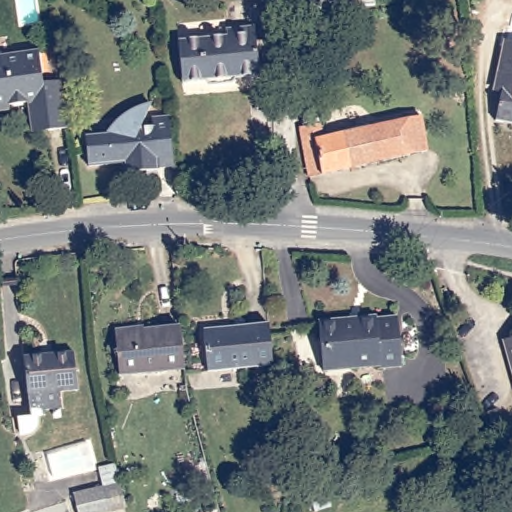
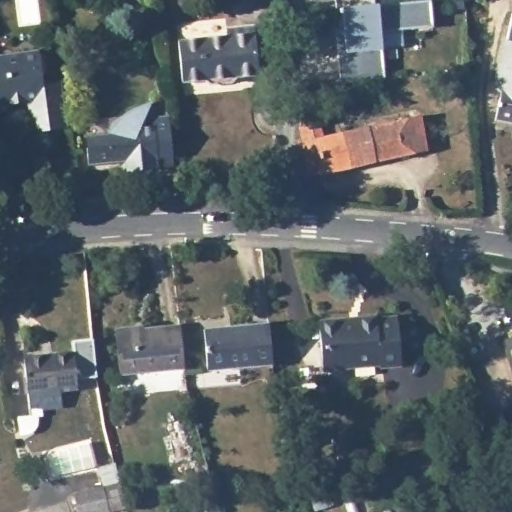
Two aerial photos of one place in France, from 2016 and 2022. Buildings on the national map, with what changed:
unchanged [(371,4),(332,8),(331,0),(370,0),(371,4)]
new [(332,33),(341,32),(338,7),(421,0),(427,0),(429,27),(377,31),(381,78),(337,83),(332,33)]
unchanged [(505,85),(497,84),(511,20),(512,20),(512,117),(499,114),(505,85)]
unchanged [(226,38),(226,33),(255,29),(261,79),(240,81),(235,87),(213,90),(206,84),(185,86),(181,44),(226,38)]
unchanged [(27,112),(26,106),(8,108),(9,112),(0,113),(0,60),(39,54),(43,87),(62,84),(68,132),(47,135),(32,138),(27,112)]
unchanged [(147,170),(148,173),(116,176),(113,165),(80,169),(78,152),(77,138),(96,136),(104,125),(110,120),(119,113),(131,107),(135,106),(138,106),(128,127),(134,131),(142,129),(141,119),(160,117),(163,145),(165,169),(147,170)]
unchanged [(426,152),(308,175),(299,128),(315,125),(317,136),(394,121),(419,116),(419,120),(426,152)]
unchanged [(382,322),(402,320),(407,369),(385,371),(385,368),(330,374),(325,330),(325,325),(362,321),(381,319),(382,322)]
unchanged [(272,363),(208,370),(203,329),(267,321),(272,363)]
unchanged [(184,366),(120,375),(113,330),(136,327),(136,331),(178,326),(184,366)]
unchanged [(512,341),(512,370),(505,343),(512,341)]
unchanged [(77,351),(81,388),(65,390),(66,406),(34,408),(33,407),(27,356),(77,351)]
unchanged [(111,476),(117,502),(87,508),(82,483),(111,476)]

